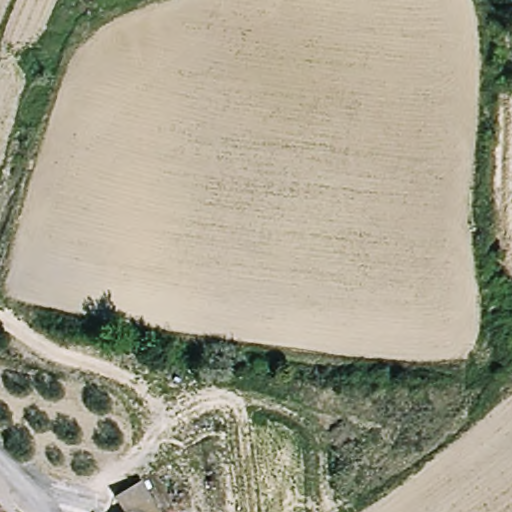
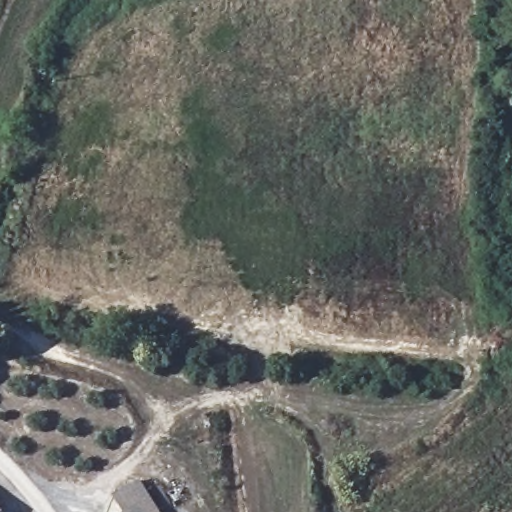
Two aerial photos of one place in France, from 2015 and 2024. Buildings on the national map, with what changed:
unchanged [(131,512),(123,498),(119,492),(145,478),(160,504),(164,512),(131,512)]
unchanged [(0,512),(0,507),(5,512),(0,512)]

